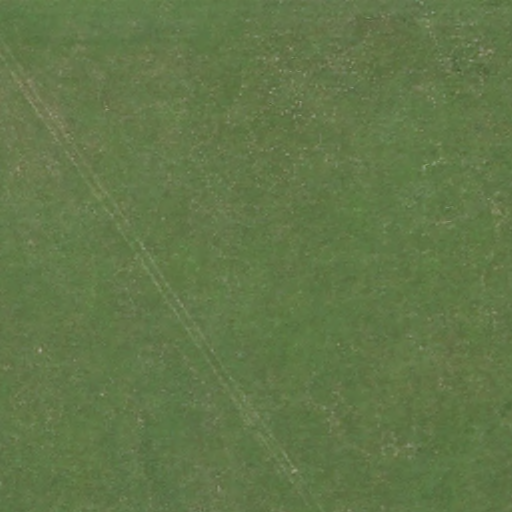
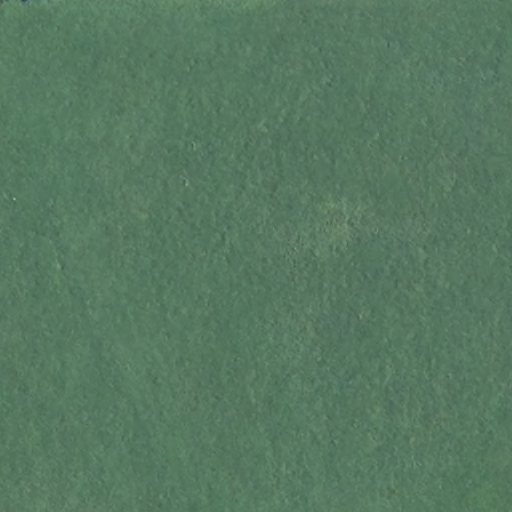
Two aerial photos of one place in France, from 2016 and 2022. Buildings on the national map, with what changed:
[]

